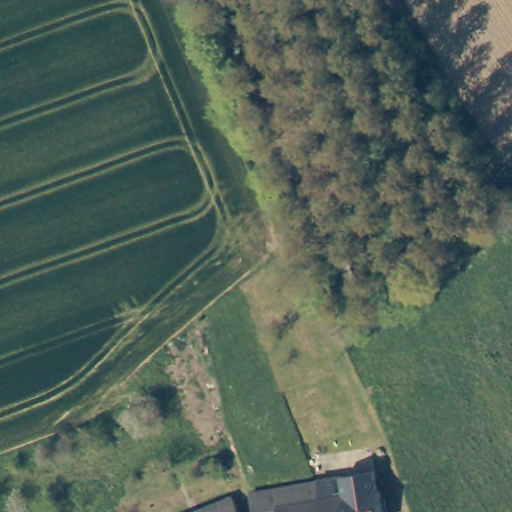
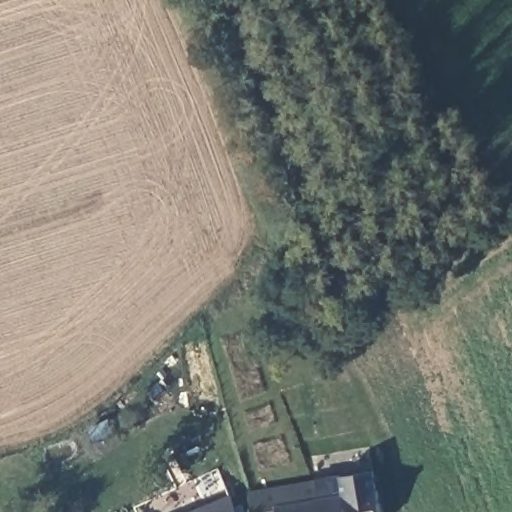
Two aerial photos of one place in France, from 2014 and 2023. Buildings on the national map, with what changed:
unchanged [(373,467),(377,487),(380,487),(383,512),(347,512),(345,494),(321,497),(317,477),(370,468),(373,467)]
unchanged [(253,489),(317,477),(321,497),(345,494),(347,512),(257,512),(257,510),(253,489)]
unchanged [(237,512),(195,512),(231,497),(237,512)]

